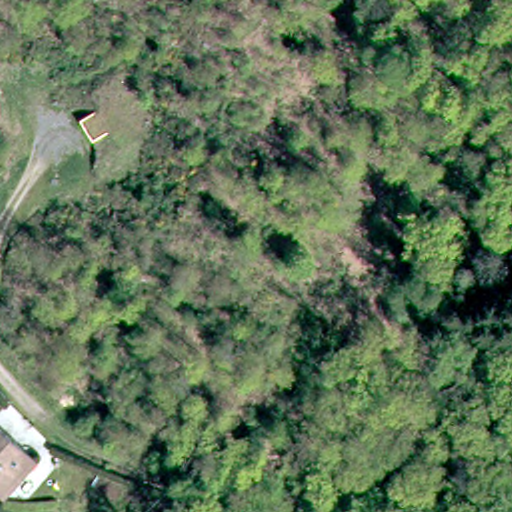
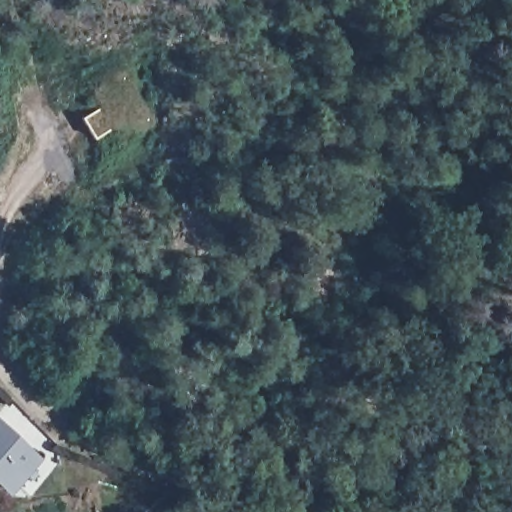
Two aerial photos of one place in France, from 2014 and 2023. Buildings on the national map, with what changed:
unchanged [(100,111),(111,128),(95,139),(82,122),(100,111)]
unchanged [(35,458),(10,481),(0,473),(0,422),(35,458)]

